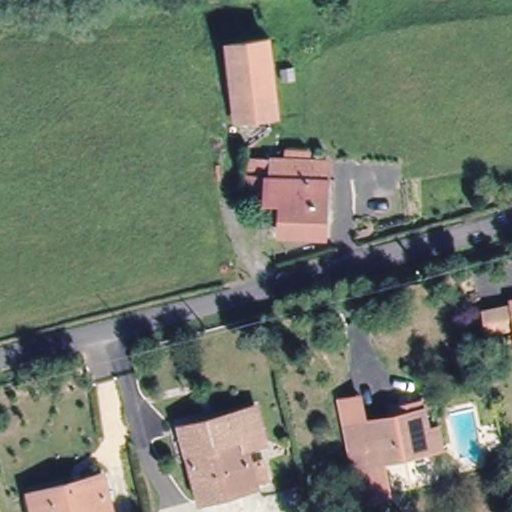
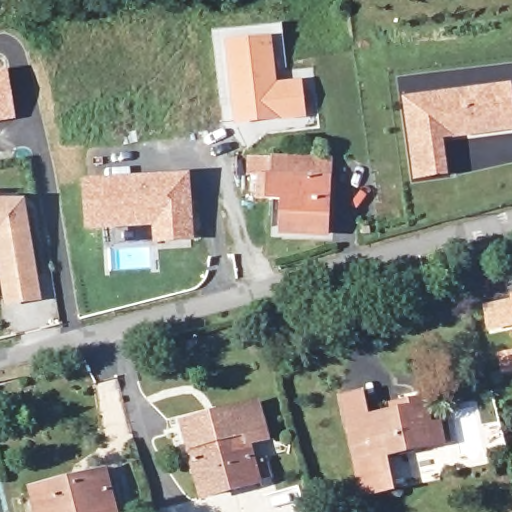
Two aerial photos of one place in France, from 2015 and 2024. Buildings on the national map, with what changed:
unchanged [(269,44),(278,119),(237,124),(228,49),(269,44)]
new [(16,118),(0,121),(0,70),(9,69),(16,118)]
new [(512,130),(444,140),(449,176),(414,181),(402,99),(512,82),(512,86),(512,130)]
unchanged [(333,157),(331,232),(290,230),(291,196),(277,195),(253,194),(254,172),(277,173),(279,156),(333,157)]
new [(188,173),(193,241),(154,242),(152,227),(85,232),(82,180),(188,173)]
new [(41,302),(4,304),(0,283),(0,200),(24,200),(41,302)]
new [(482,304),(512,297),(512,325),(485,331),(482,304)]
unchanged [(364,425),(387,420),(385,408),(415,401),(418,413),(423,430),(437,427),(441,446),(377,460),(385,494),(361,499),(340,402),(359,398),(364,425)]
unchanged [(251,405),(261,438),(242,443),(248,463),(260,460),(265,479),(253,482),(253,484),(200,498),(179,424),(251,405)]
unchanged [(103,468),(116,512),(40,512),(33,486),(103,468)]
demolished [(302,483),(304,496),(291,498),(290,484),(302,483)]

